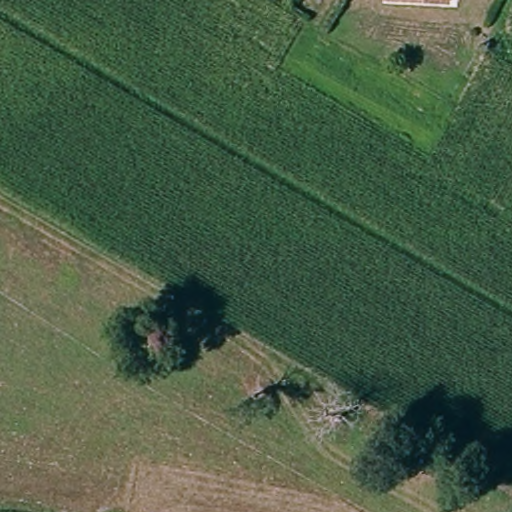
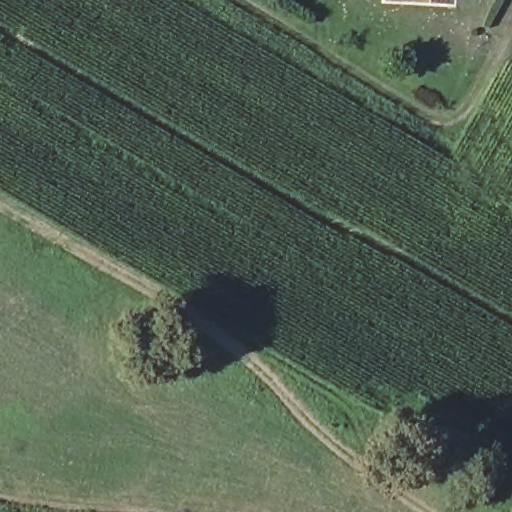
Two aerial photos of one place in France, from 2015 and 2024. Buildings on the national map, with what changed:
unchanged [(389,1),(389,0),(450,0),(450,1),(389,1)]

